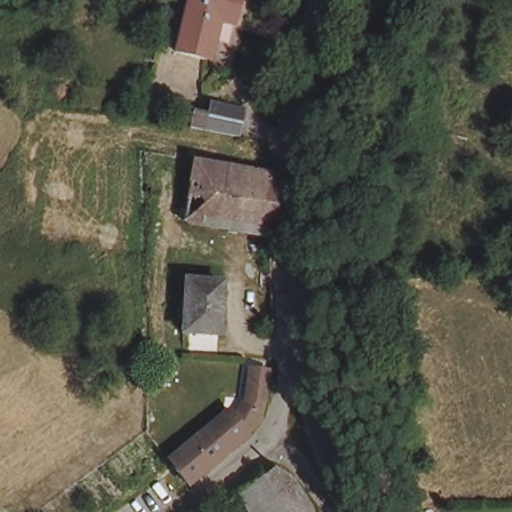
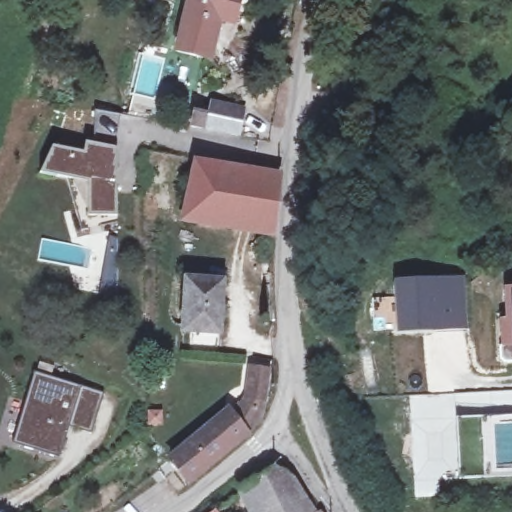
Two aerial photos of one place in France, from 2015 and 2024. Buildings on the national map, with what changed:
unchanged [(238,17),(224,14),(214,53),(182,45),(193,0),(243,0),(238,17)]
unchanged [(192,121),(195,106),(210,109),(213,97),(244,104),(238,131),(192,121)]
new [(82,230),(68,177),(40,173),(53,146),(82,151),(84,141),(115,147),(115,179),(118,215),(118,222),(82,230)]
unchanged [(282,181),(277,232),(186,216),(195,165),(282,181)]
new [(465,274),(468,329),(395,333),(392,278),(465,274)]
unchanged [(222,282),(220,333),(183,331),(187,279),(222,282)]
unchanged [(319,283),(330,281),(332,296),(322,298),(319,283)]
new [(503,322),(509,322),(507,290),(512,290),(512,363),(505,363),(502,358),(501,348),(504,344),(503,322)]
unchanged [(233,411),(240,419),(252,397),(255,367),(275,370),(270,400),(272,401),(267,421),(253,434),(194,483),(180,467),(175,459),(233,411)]
new [(60,457),(17,444),(12,443),(35,371),(39,372),(105,392),(92,433),(75,428),(70,426),(60,457)]
unchanged [(277,474),(294,483),(306,502),(312,509),(312,512),(249,512),(242,497),(271,475),(277,474)]

